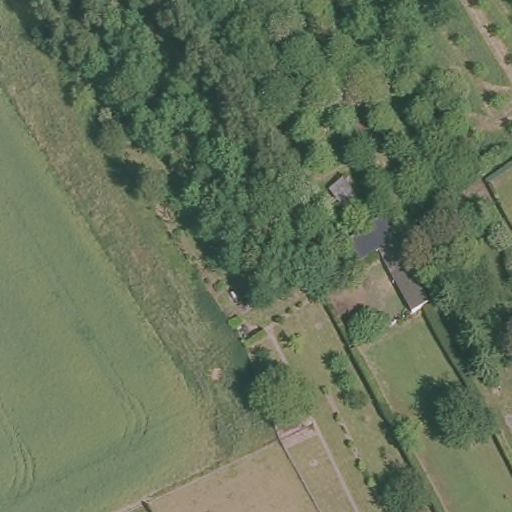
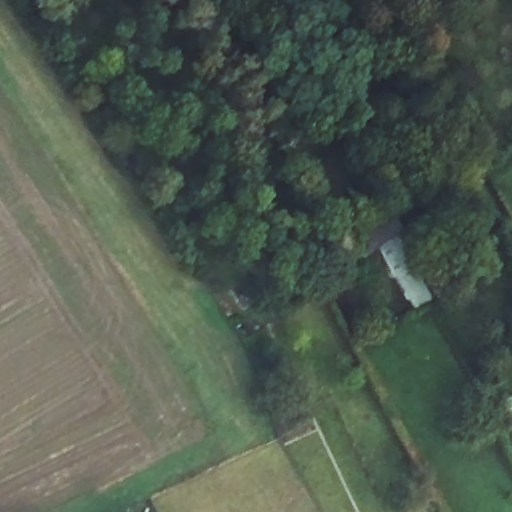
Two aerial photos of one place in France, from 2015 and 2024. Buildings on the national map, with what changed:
unchanged [(403,250),(422,285),(401,298),(382,264),(403,250)]

